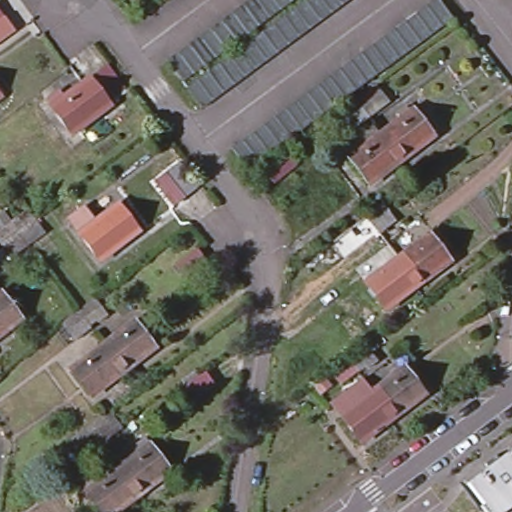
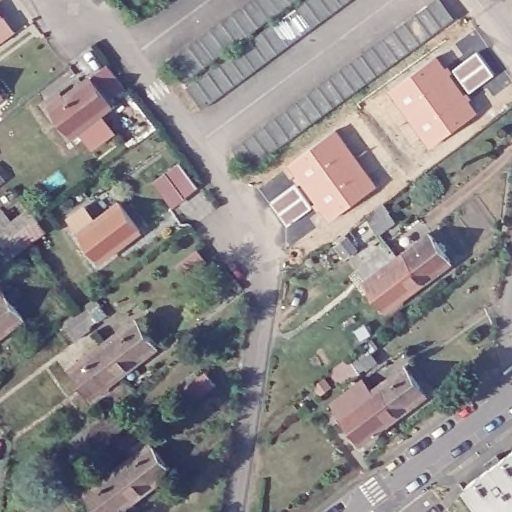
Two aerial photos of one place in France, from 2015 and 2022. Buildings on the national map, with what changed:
unchanged [(209,37),(219,30),(229,22),(239,15),(250,6),(258,0),(302,0),(299,3),(287,11),(277,19),(267,27),(255,36),(245,42),(235,51),(225,58),(216,65),(205,72),(193,82),(180,92),(164,71),(177,61),(190,52),(200,44),(209,37)]
unchanged [(225,66),(235,58),(246,50),(257,42),(269,34),(280,25),(292,17),(302,9),(314,0),(359,0),(353,4),(342,13),(330,21),(318,30),(307,38),(296,47),(285,55),(274,64),(262,72),(252,80),(242,87),(232,94),(222,102),(212,109),(202,117),(185,96),(196,87),(207,80),(217,72),(225,66)]
unchanged [(280,119),(291,110),(302,102),(313,94),(324,87),(335,78),(345,71),(356,62),(367,54),(378,46),(388,39),(399,30),(410,22),(420,15),(432,6),(440,0),(444,5),(455,21),(447,26),(436,35),(425,42),(414,51),(404,59),(393,67),(382,75),(372,83),(368,86),(360,91),(350,99),(339,107),(329,116),(317,124),(307,132),(296,140),(285,147),(274,156),(264,164),(253,172),(252,171),(237,150),(247,142),(259,134),(270,126),(280,119)]
unchanged [(0,37),(0,5),(15,25),(0,37)]
new [(477,54),(493,77),(469,94),(452,72),(477,54)]
new [(437,60),(477,115),(429,151),(387,94),(437,60)]
unchanged [(107,71),(125,93),(114,102),(95,79),(107,71)]
demolished [(370,119),(379,127),(362,140),(352,132),(349,134),(332,115),(376,82),(389,102),(370,119)]
unchanged [(110,109),(72,141),(50,113),(51,112),(47,107),(60,97),(64,102),(90,83),(110,109)]
unchanged [(0,103),(0,93),(5,100),(0,103)]
demolished [(415,111),(434,137),(371,185),(351,157),(415,111)]
new [(335,131),(376,190),(328,226),(287,168),(335,131)]
demolished [(275,183),(271,178),(267,171),(288,155),(290,158),(297,167),(275,183)]
new [(183,170),(202,194),(188,204),(170,180),(183,170)]
new [(295,187),(311,212),(286,228),(270,205),(295,187)]
unchanged [(122,207),(141,235),(99,267),(79,240),(122,207)]
unchanged [(11,221),(28,209),(59,250),(42,259),(34,245),(5,267),(0,261),(0,212),(4,209),(11,221)]
unchanged [(353,236),(370,223),(387,210),(393,219),(400,228),(383,240),(375,232),(358,244),(353,236)]
unchanged [(450,263),(385,311),(365,284),(431,237),(450,263)]
unchanged [(216,275),(224,286),(204,302),(195,291),(216,275)]
unchanged [(24,322),(0,338),(0,295),(3,292),(24,322)]
unchanged [(140,326),(160,354),(93,402),(74,375),(140,326)]
unchanged [(352,364),(369,352),(374,359),(357,372),(340,385),(334,377),(352,364)]
unchanged [(344,422),(376,398),(409,373),(429,400),(392,427),(364,448),(344,422)]
unchanged [(167,471),(111,512),(102,512),(84,487),(147,441),(167,471)]
unchanged [(507,512),(506,512),(481,478),(512,455),(512,508),(507,512)]

